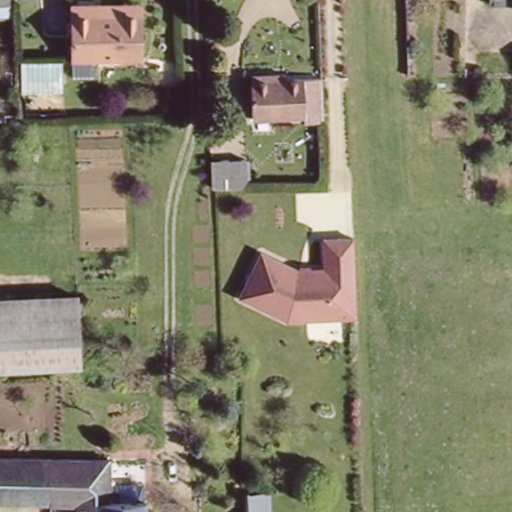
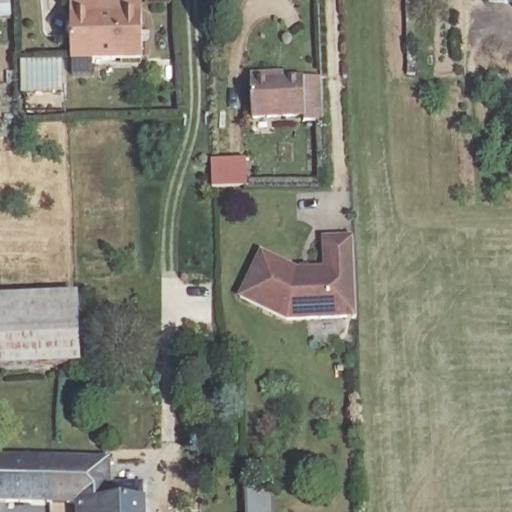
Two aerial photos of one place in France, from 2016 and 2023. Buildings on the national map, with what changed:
unchanged [(0,0),(8,0),(9,13),(0,13),(0,0)]
unchanged [(94,1),(141,0),(142,11),(145,55),(95,59),(96,75),(75,76),(70,2),(94,1)]
unchanged [(491,5),(490,0),(512,0),(512,5),(491,5)]
unchanged [(246,72),(266,72),(277,72),(277,78),(281,77),(283,114),(248,115),(246,72)]
unchanged [(296,120),(296,114),(283,114),(281,77),(320,77),(322,121),(296,120)]
unchanged [(213,160),(246,159),(246,187),(214,187),(213,160)]
unchanged [(356,317),(285,320),(238,295),(259,249),(301,268),(323,267),(323,235),(353,235),(356,317)]
unchanged [(0,295),(76,301),(72,369),(0,364),(0,295)]
unchanged [(0,455),(50,455),(49,497),(0,497),(0,455)]
unchanged [(49,497),(50,455),(114,455),(118,496),(141,496),(143,512),(77,512),(76,497),(49,497)]
unchanged [(226,512),(225,491),(245,490),(245,493),(268,492),(268,512),(226,512)]

